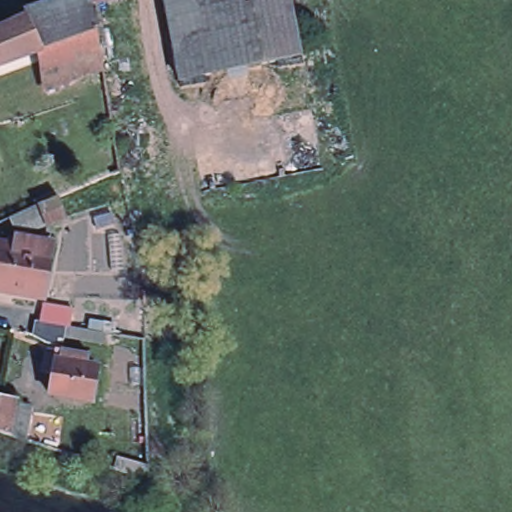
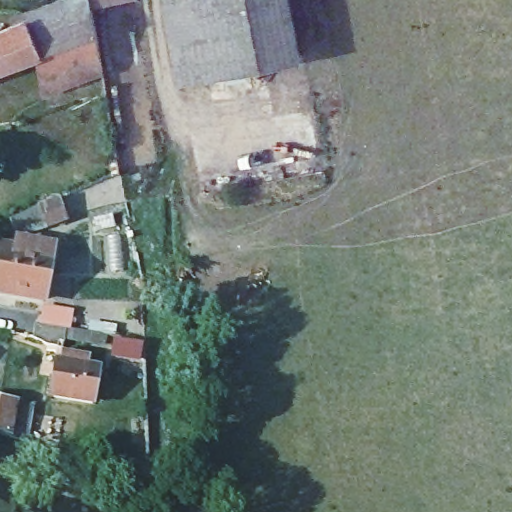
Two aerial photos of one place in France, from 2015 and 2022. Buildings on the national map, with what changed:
unchanged [(25,11),(53,0),(91,0),(92,2),(99,32),(41,54),(27,17),(25,11)]
unchanged [(91,0),(102,0),(92,2),(91,0)]
unchanged [(177,83),(161,0),(287,0),(299,59),(177,83)]
unchanged [(41,54),(37,55),(0,68),(0,30),(27,17),(41,54)]
unchanged [(41,54),(99,32),(104,70),(49,91),(37,55),(41,54)]
unchanged [(61,202),(69,222),(50,230),(42,210),(61,202)]
unchanged [(18,244),(51,250),(42,301),(0,294),(0,254),(0,251),(16,254),(18,244)]
unchanged [(45,347),(35,342),(32,338),(35,327),(40,327),(42,315),(69,318),(67,332),(64,351),(45,347)]
unchanged [(88,360),(87,370),(97,372),(92,407),(50,399),(55,365),(59,365),(62,356),(88,360)]
unchanged [(9,435),(0,432),(0,397),(15,401),(15,402),(30,405),(24,440),(9,435)]

